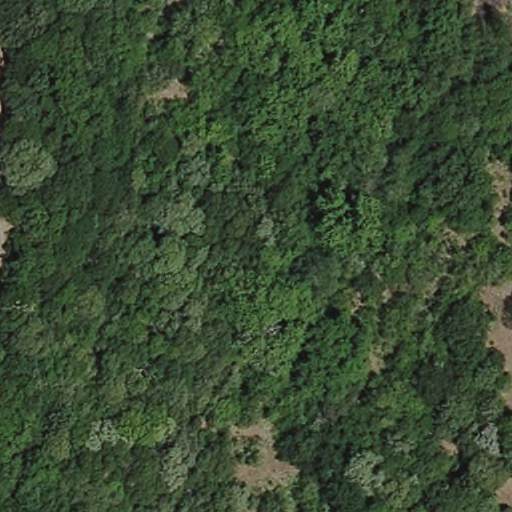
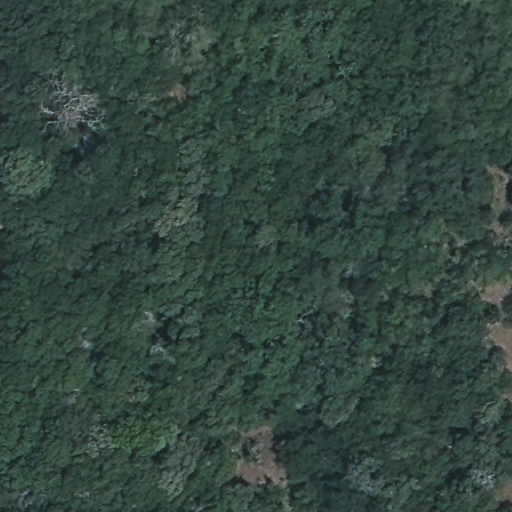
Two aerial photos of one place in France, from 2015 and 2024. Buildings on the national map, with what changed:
[]

